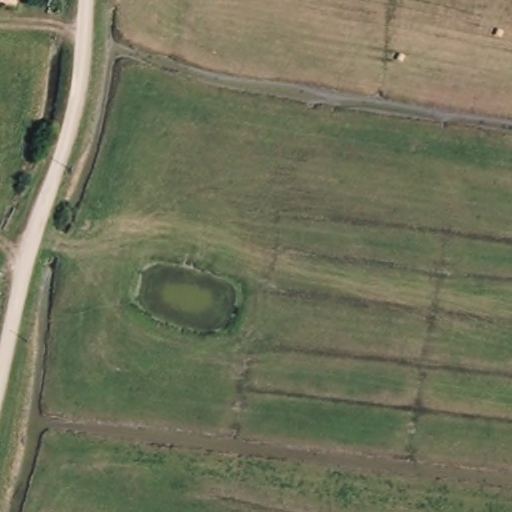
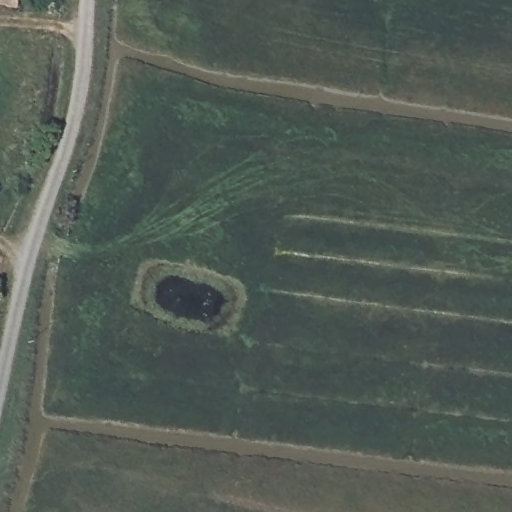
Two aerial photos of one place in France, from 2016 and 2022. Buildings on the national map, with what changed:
unchanged [(0,7),(0,0),(17,0),(17,9),(0,7)]

